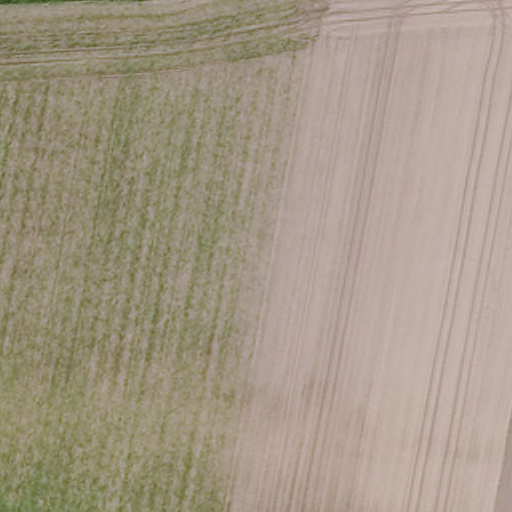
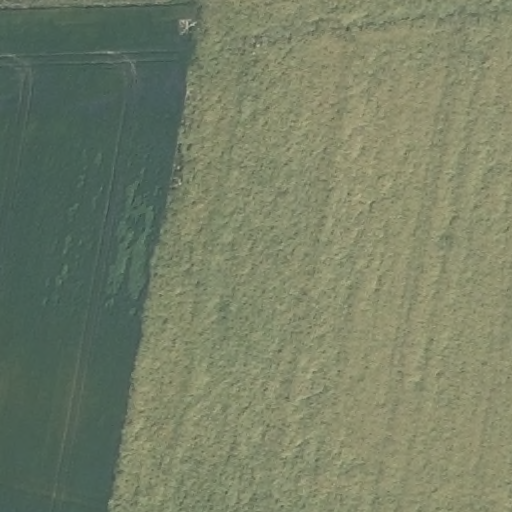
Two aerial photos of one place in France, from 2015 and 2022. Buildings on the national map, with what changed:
[]

